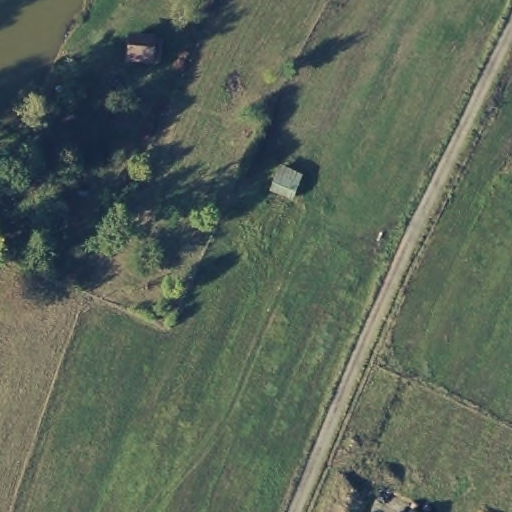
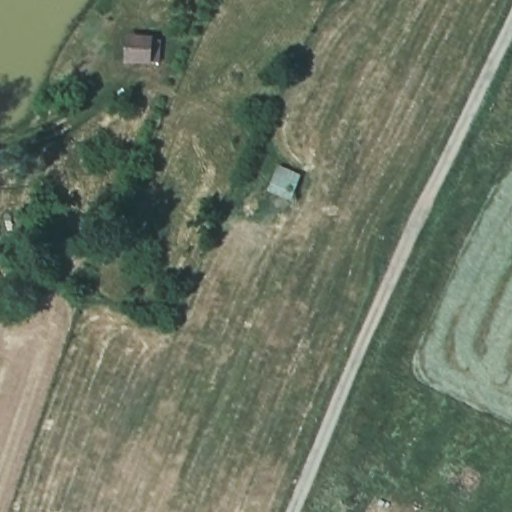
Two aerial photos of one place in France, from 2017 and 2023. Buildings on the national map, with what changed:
unchanged [(151,60),(121,57),(123,33),(153,36),(151,60)]
unchanged [(279,165),(300,174),(289,202),(268,192),(279,165)]

